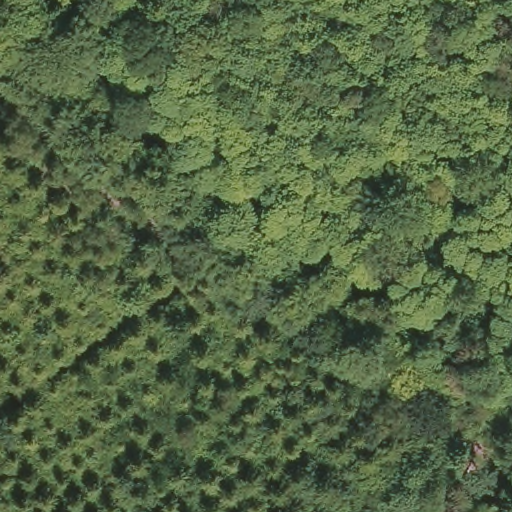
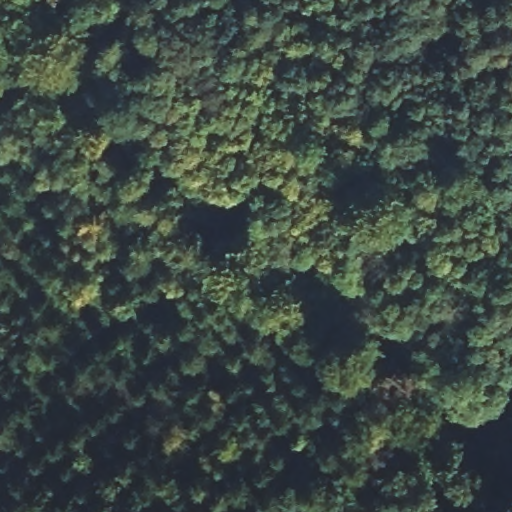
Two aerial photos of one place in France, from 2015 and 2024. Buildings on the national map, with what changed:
[]

